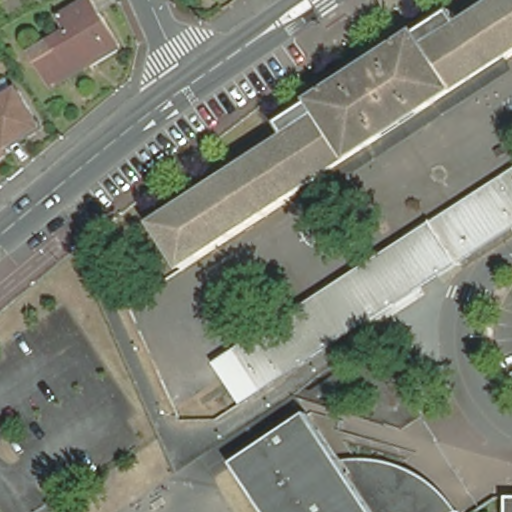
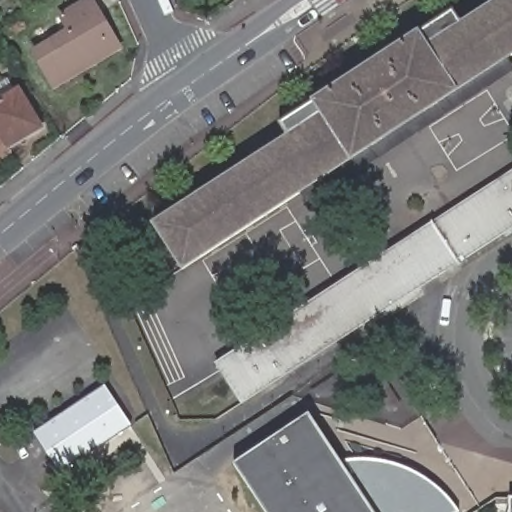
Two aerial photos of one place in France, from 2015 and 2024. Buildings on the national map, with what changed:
unchanged [(461,22),(494,0),(512,0),(512,51),(505,56),(512,63),(512,71),(309,205),(299,189),(182,268),(149,222),(285,137),(273,120),(449,7),(461,22)]
unchanged [(30,56),(63,35),(55,19),(85,1),(94,16),(114,50),(85,67),(49,90),(30,56)]
unchanged [(5,85),(12,97),(18,95),(39,130),(8,149),(0,134),(0,88),(5,85)]
unchanged [(0,159),(0,134),(8,149),(11,152),(0,159)]
unchanged [(512,177),(512,232),(333,348),(290,377),(259,397),(232,356),(512,177)]
new [(58,473),(32,433),(104,386),(131,426),(58,473)]
unchanged [(307,407),(344,462),(357,462),(371,463),(387,467),(397,471),(413,477),(427,486),(436,492),(444,499),(453,508),(448,512),(279,512),(277,509),(240,452),(307,407)]
unchanged [(512,512),(511,512),(511,498),(511,493),(512,493),(512,512)]
unchanged [(279,512),(276,512),(277,509),(279,512)]

